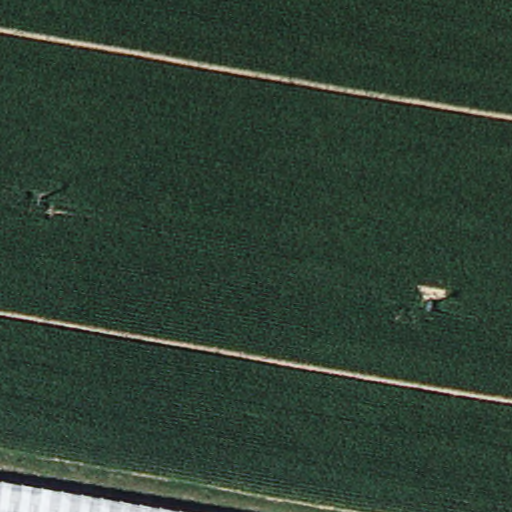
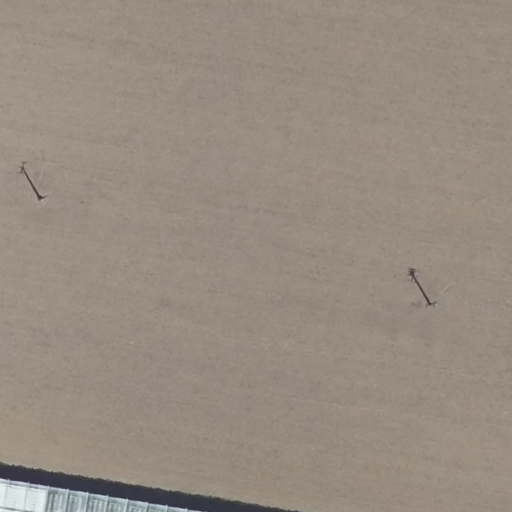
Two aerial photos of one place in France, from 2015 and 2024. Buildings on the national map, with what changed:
unchanged [(9,478),(210,512),(0,512),(0,477),(9,478)]

